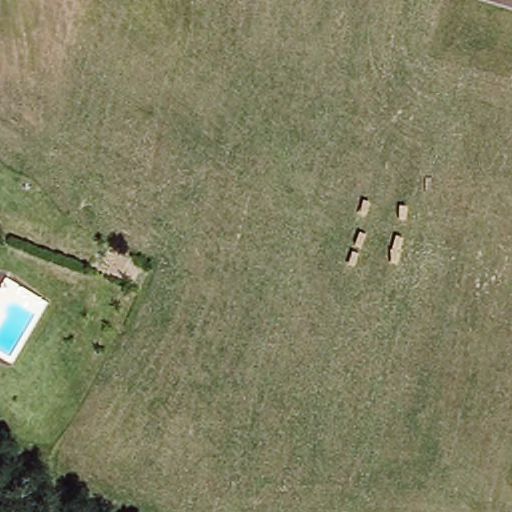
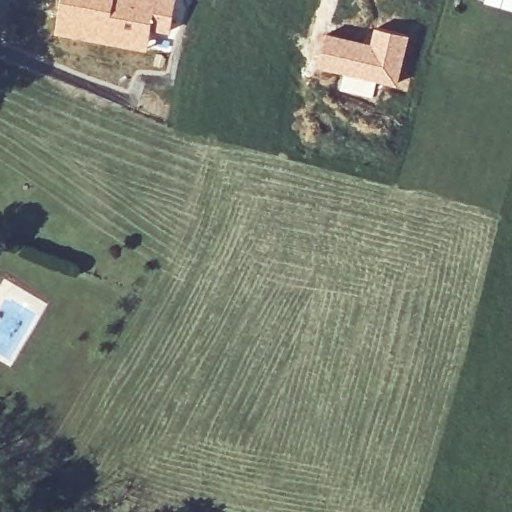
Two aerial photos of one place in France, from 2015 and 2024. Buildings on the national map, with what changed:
new [(177,0),(170,33),(152,28),(147,50),(55,34),(61,0),(177,0)]
new [(0,30),(0,21),(4,26),(0,30)]
new [(315,69),(322,31),(370,41),(375,26),(411,34),(397,87),(377,81),(372,99),(337,90),(341,75),(315,69)]

